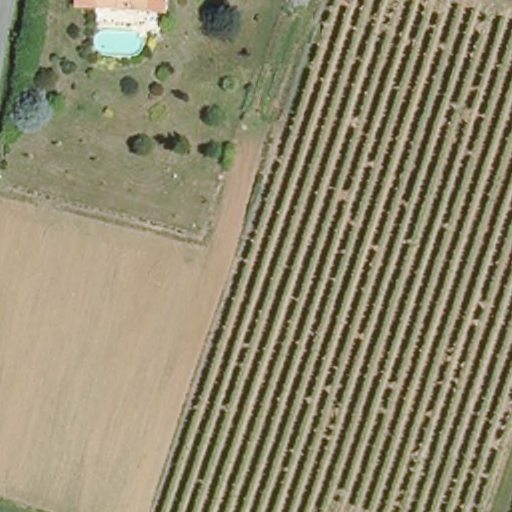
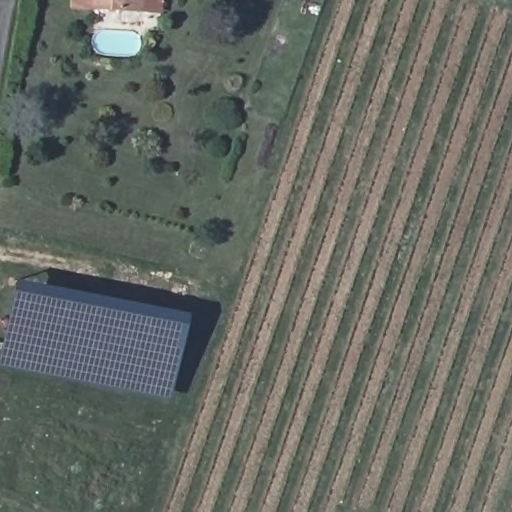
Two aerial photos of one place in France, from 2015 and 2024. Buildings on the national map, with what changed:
unchanged [(145,11),(125,9),(60,4),(60,0),(146,0),(145,11)]
new [(191,317),(176,400),(0,367),(0,357),(16,281),(191,317)]

